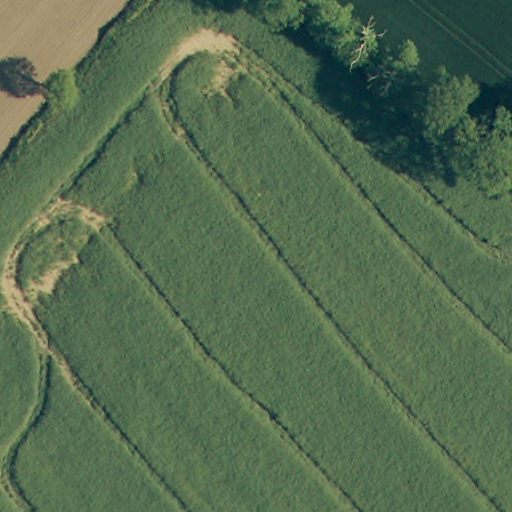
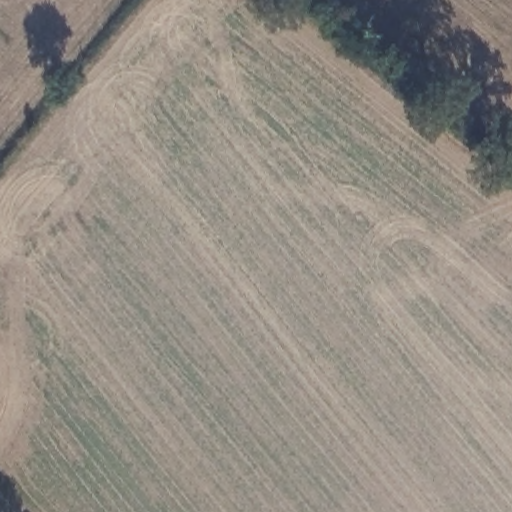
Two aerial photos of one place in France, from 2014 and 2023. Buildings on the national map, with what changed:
[]

